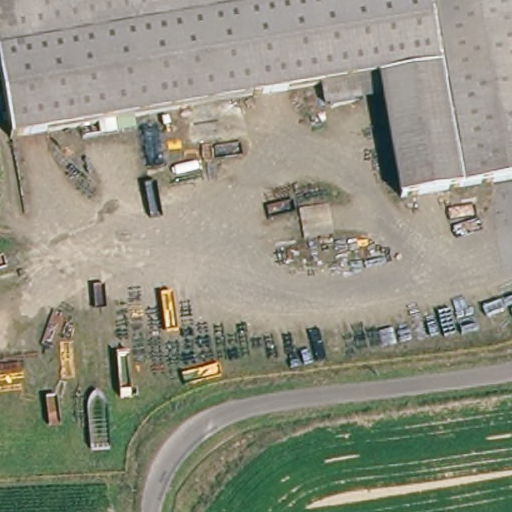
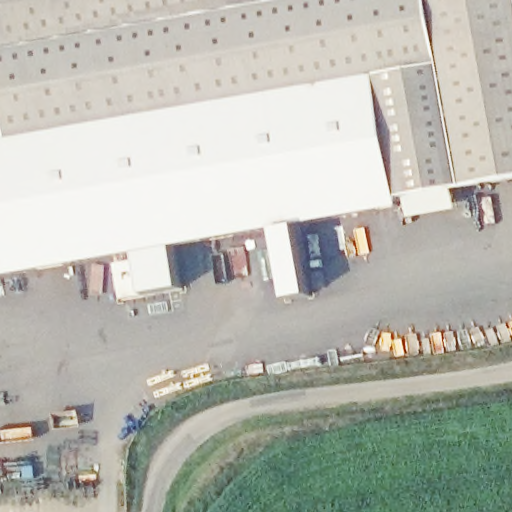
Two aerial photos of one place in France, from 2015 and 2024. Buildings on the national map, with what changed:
unchanged [(438,192),(400,198),(378,75),(10,140),(0,81),(0,0),(512,0),(512,179),(438,192)]
new [(175,248),(183,293),(147,298),(145,288),(122,299),(117,259),(0,282),(0,142),(10,140),(378,75),(400,198),(402,208),(175,248)]

